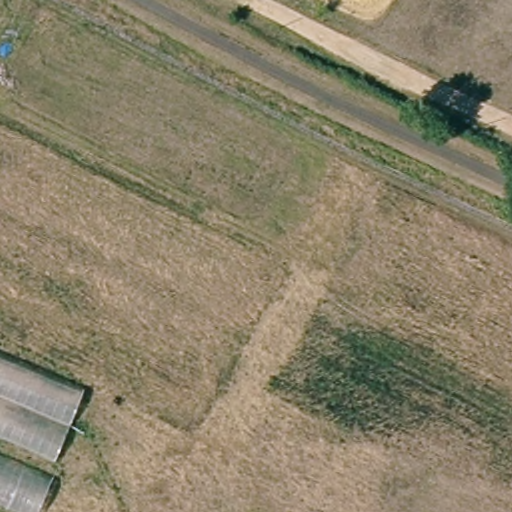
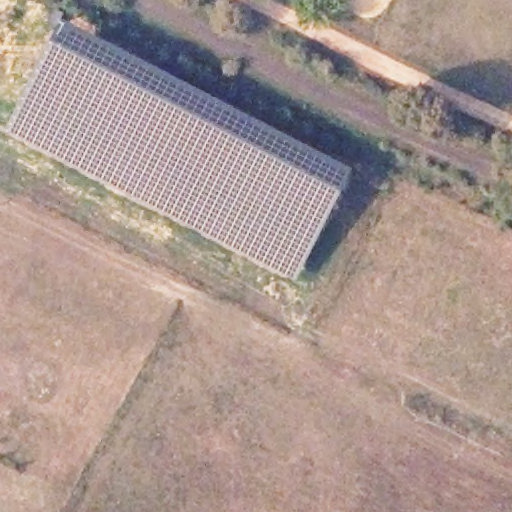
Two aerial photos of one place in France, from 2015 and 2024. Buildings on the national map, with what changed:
new [(63,17),(356,167),(297,281),(6,130),(63,17)]

